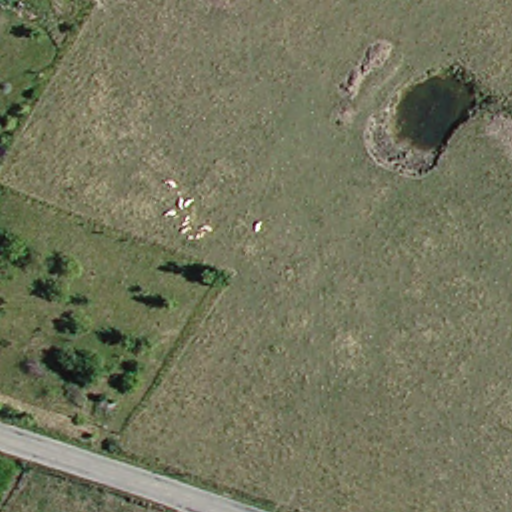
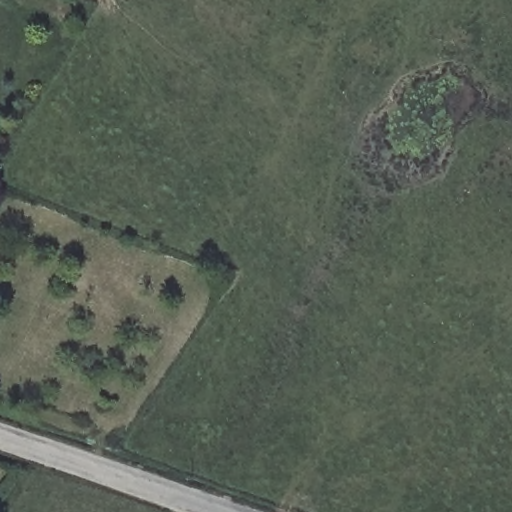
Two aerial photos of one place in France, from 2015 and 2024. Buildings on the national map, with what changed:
[]

